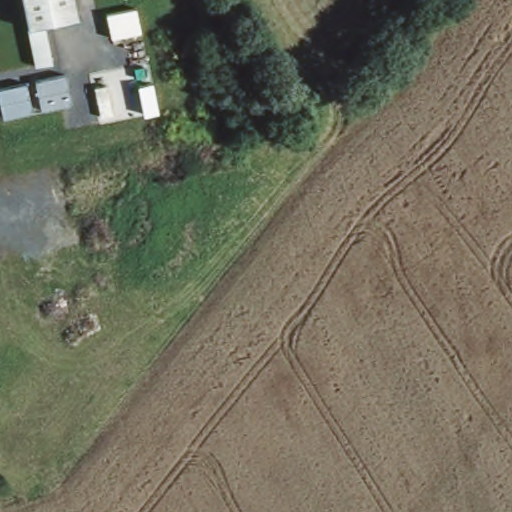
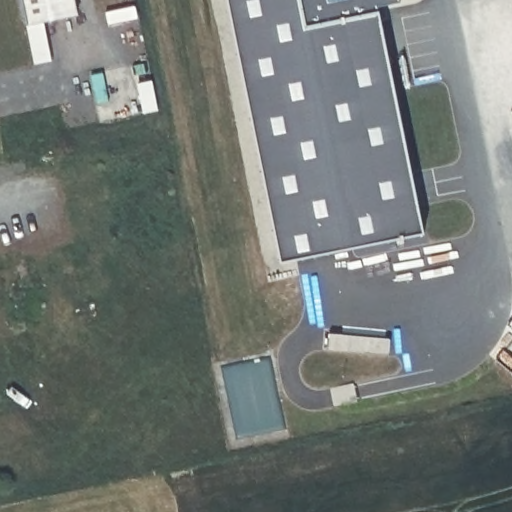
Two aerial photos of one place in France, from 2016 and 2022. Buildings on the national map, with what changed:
unchanged [(29,27),(23,0),(74,0),(77,16),(29,27)]
new [(399,0),(399,2),(377,6),(378,12),(422,232),(281,262),(227,0),(399,0)]

